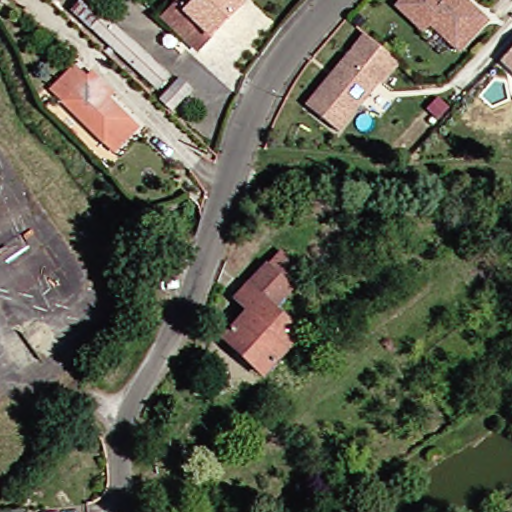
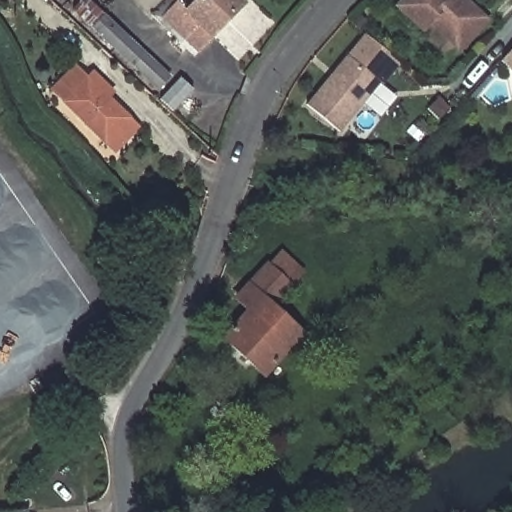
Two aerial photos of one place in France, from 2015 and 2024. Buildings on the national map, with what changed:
unchanged [(157,89),(91,27),(76,14),(89,0),(104,14),(170,76),(157,89)]
unchanged [(243,3),(197,48),(186,36),(184,38),(162,17),(177,3),(185,11),(186,10),(176,0),(239,0),(243,3)]
unchanged [(460,47),(434,22),(427,29),(403,6),(408,0),(452,0),(453,0),(466,0),(487,19),(460,47)]
unchanged [(389,52),(371,72),(385,85),(341,131),(310,102),(372,35),(389,52)]
unchanged [(505,61),(512,54),(512,68),(505,61)]
unchanged [(84,75),(91,69),(111,89),(105,96),(135,126),(110,150),(60,99),(84,75)]
unchanged [(169,115),(162,109),(156,103),(177,81),(190,93),(187,95),(169,115)]
unchanged [(306,333),(268,375),(228,338),(253,309),(241,298),(271,264),(297,287),(277,307),(306,333)]

